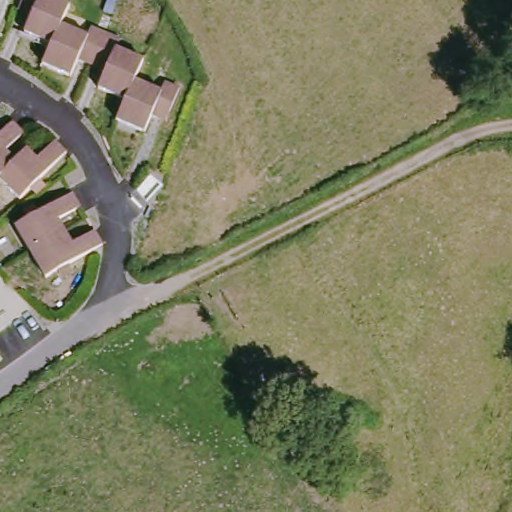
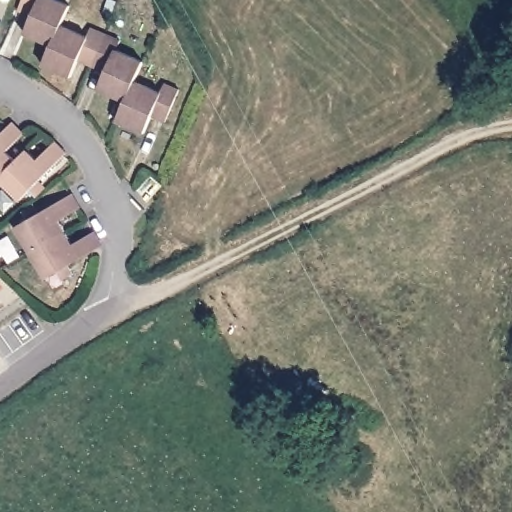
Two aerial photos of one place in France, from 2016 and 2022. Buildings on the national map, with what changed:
unchanged [(0,0),(2,0),(0,6),(0,0)]
unchanged [(52,0),(67,6),(61,26),(90,38),(94,27),(123,38),(119,51),(145,61),(137,82),(165,93),(170,82),(184,88),(175,113),(160,107),(150,133),(122,122),(130,100),(104,89),(112,65),(84,54),(75,77),(47,66),(55,43),(28,33),(36,10),(23,4),(25,0),(52,0)]
unchanged [(39,158),(59,139),(70,151),(20,198),(0,177),(0,135),(15,120),(25,131),(7,148),(17,160),(29,148),(39,158)]
unchanged [(72,195),(80,207),(56,222),(72,247),(94,233),(102,246),(44,279),(14,229),(72,195)]

